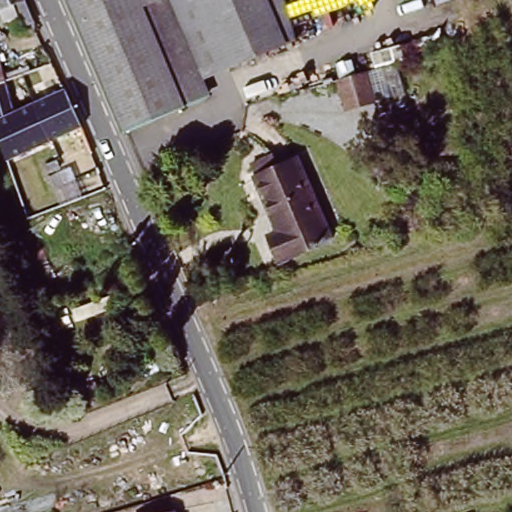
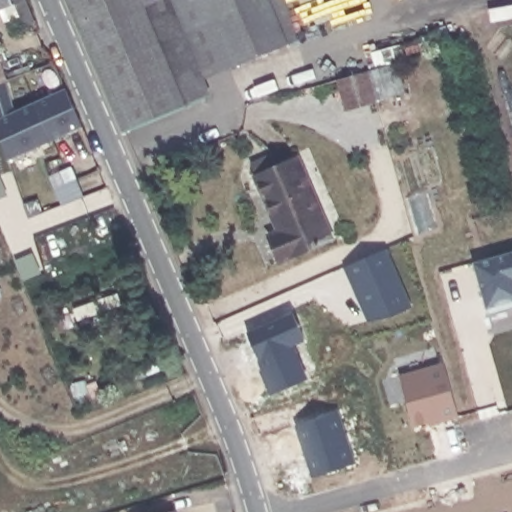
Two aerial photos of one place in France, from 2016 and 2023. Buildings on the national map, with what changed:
unchanged [(10,7),(6,6),(4,0),(21,0),(25,10),(14,15),(10,7)]
unchanged [(135,130),(122,135),(113,116),(64,0),(140,0),(177,91),(202,81),(210,101),(135,130)]
unchanged [(202,81),(177,91),(140,0),(289,0),(299,42),(202,81)]
unchanged [(9,88),(18,119),(56,101),(52,92),(63,86),(84,132),(12,167),(0,130),(0,59),(9,88)]
unchanged [(405,91),(344,107),(337,78),(398,62),(405,91)]
unchanged [(287,263),(275,234),(285,231),(263,178),(265,177),(260,165),(283,156),(288,167),(302,162),(335,244),(287,263)]
new [(367,320),(344,266),(387,248),(412,305),(367,320)]
new [(486,307),(474,262),(512,251),(512,309),(487,315),(486,307)]
new [(307,379),(271,395),(260,370),(266,367),(262,358),(259,359),(247,331),(292,312),(304,339),(292,344),(307,379)]
new [(442,421),(441,417),(413,425),(400,375),(444,363),(457,414),(459,416),(442,421)]

